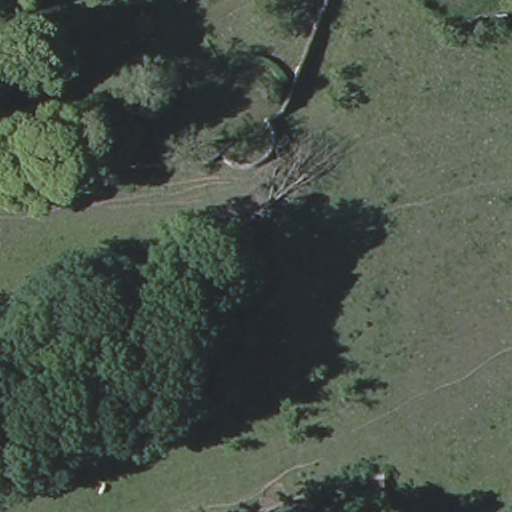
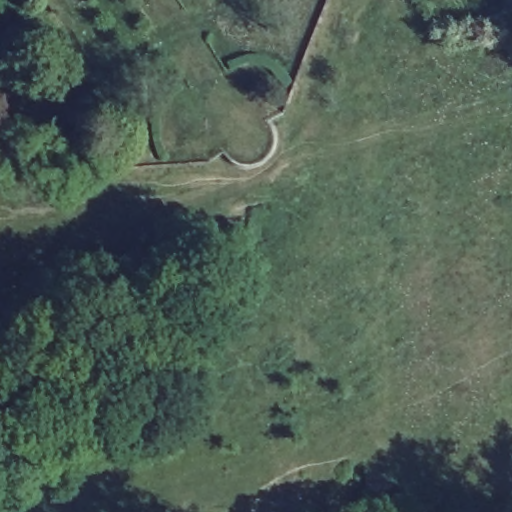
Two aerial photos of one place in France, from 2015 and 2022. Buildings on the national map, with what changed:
unchanged [(385,492),(382,512),(360,512),(364,492),(370,492),(385,492)]

